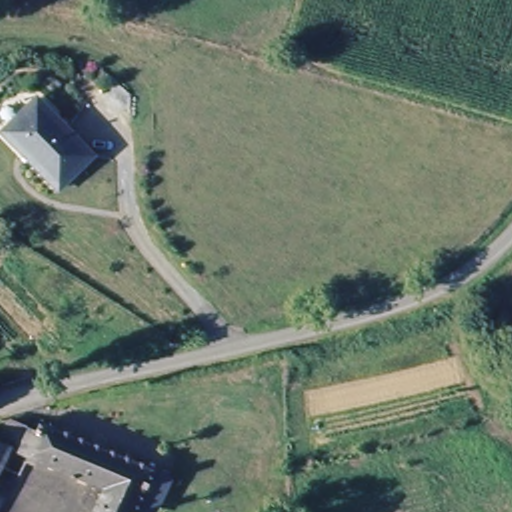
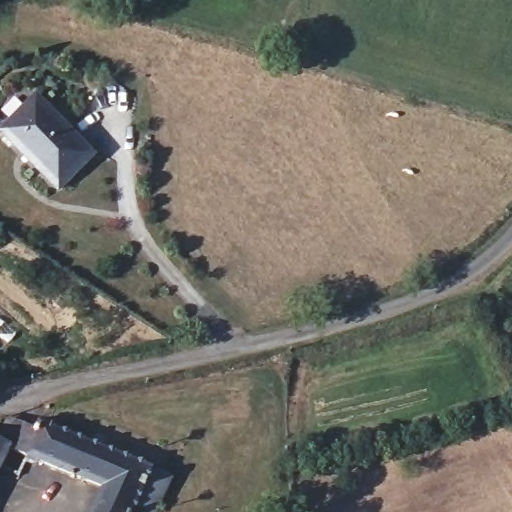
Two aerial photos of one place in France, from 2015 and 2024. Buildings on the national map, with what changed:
unchanged [(40,93),(94,151),(59,183),(5,125),(40,93)]
unchanged [(12,419),(41,433),(47,425),(153,475),(169,482),(170,482),(158,512),(101,512),(108,496),(14,449),(0,478),(0,440),(12,419)]

